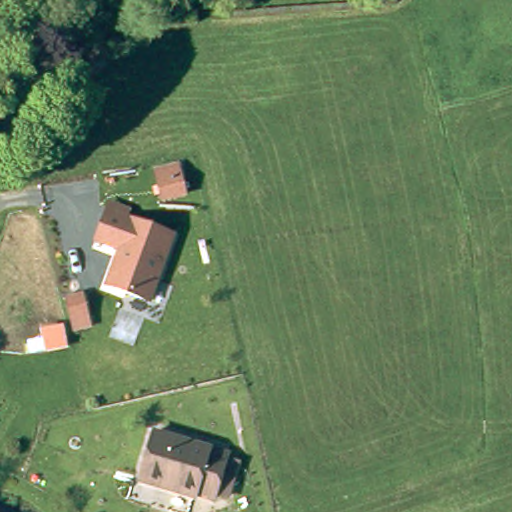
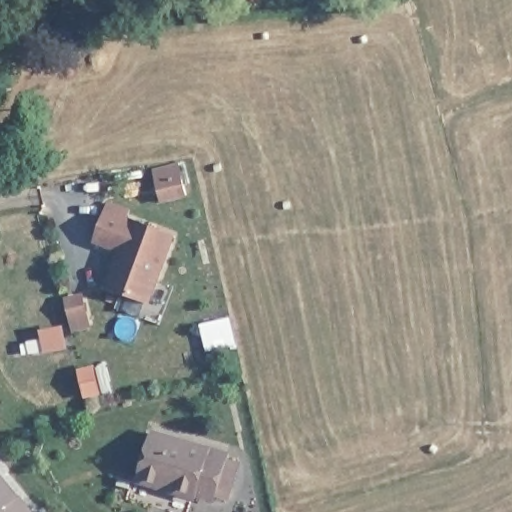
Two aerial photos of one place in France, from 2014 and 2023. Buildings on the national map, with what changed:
unchanged [(185,197),(160,202),(155,170),(180,164),(185,197)]
unchanged [(108,201),(130,207),(131,218),(175,233),(151,303),(105,286),(115,250),(93,243),(108,201)]
unchanged [(229,508),(215,505),(213,512),(211,512),(194,507),(193,511),(172,504),(175,499),(140,487),(152,445),(226,467),(225,471),(238,476),(229,508)]
new [(35,512),(0,512),(0,470),(22,495),(35,512)]

